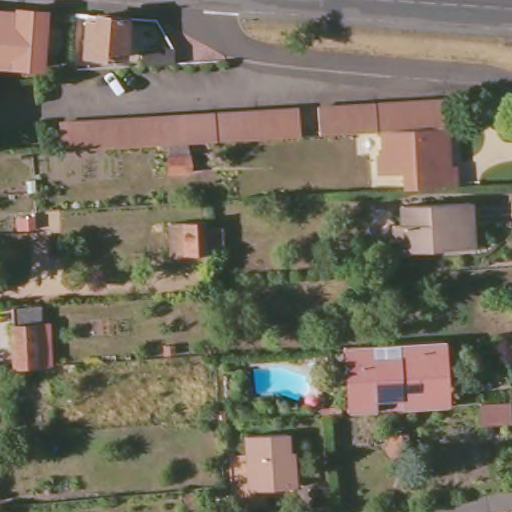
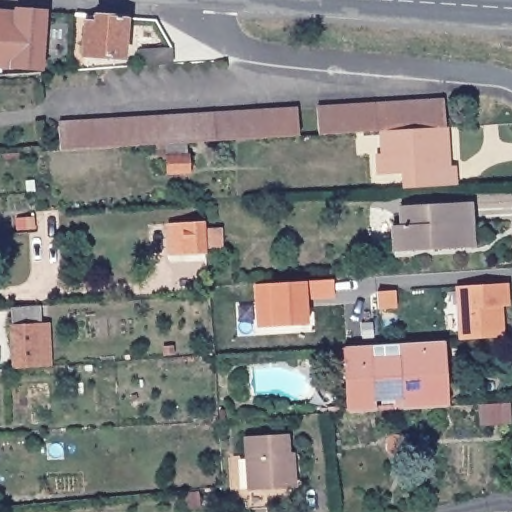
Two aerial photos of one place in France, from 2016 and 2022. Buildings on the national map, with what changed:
unchanged [(16,18),(17,9),(45,11),(41,67),(0,65),(0,17),(16,18)]
unchanged [(125,17),(122,56),(82,54),(85,22),(95,23),(96,15),(125,17)]
unchanged [(172,64),(141,66),(140,49),(171,48),(172,64)]
unchanged [(445,127),(440,127),(381,131),(319,135),(317,107),(443,100),(445,127)]
unchanged [(299,136),(61,150),(60,122),(297,109),(299,136)]
unchanged [(440,127),(442,150),(449,149),(450,165),(456,165),(457,186),(404,189),(403,174),(377,175),(376,154),(382,153),(381,131),(440,127)]
unchanged [(473,221),(466,222),(467,244),(398,247),(397,226),(404,225),(403,205),(472,201),(473,221)]
unchanged [(173,261),(170,224),(205,221),(205,227),(220,225),(221,246),(206,247),(207,258),(173,261)]
new [(334,296),(308,298),(310,325),(255,328),(256,279),(333,277),(334,296)]
new [(509,304),(507,306),(505,338),(458,340),(458,284),(509,279),(509,304)]
unchanged [(46,306),(46,335),(40,335),(42,368),(24,371),(26,386),(0,387),(0,371),(12,368),(10,307),(46,306)]
unchanged [(446,341),(447,356),(449,387),(444,388),(445,405),(350,411),(347,348),(441,342),(446,341)]
unchanged [(508,421),(479,422),(478,403),(506,401),(507,401),(508,421)]
unchanged [(343,411),(335,412),(333,407),(343,406),(343,411)]
unchanged [(249,504),(248,494),(247,485),(246,452),(245,433),(287,430),(290,467),(295,466),(295,482),(266,484),(267,502),(249,504)]

